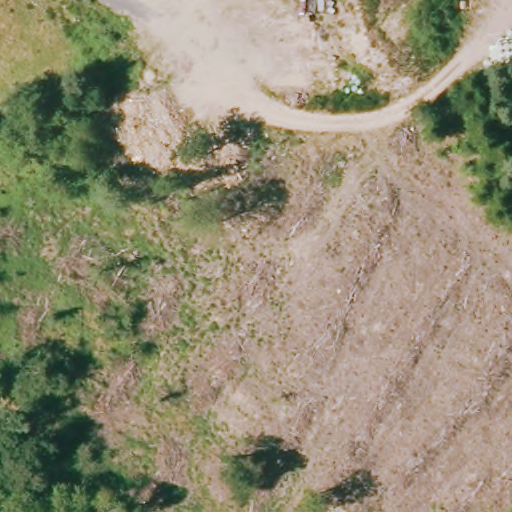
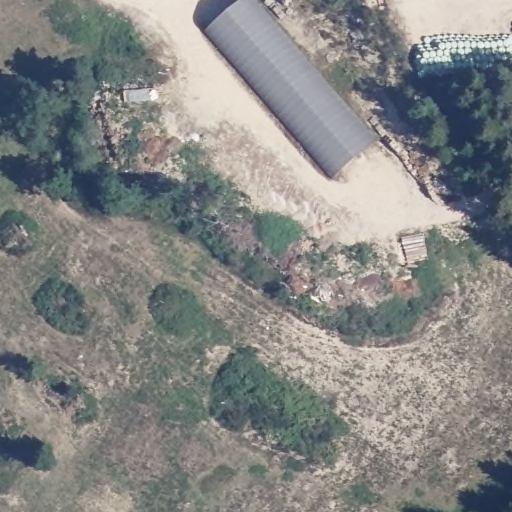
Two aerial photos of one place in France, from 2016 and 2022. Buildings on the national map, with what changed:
new [(209,29),(243,0),(252,0),(375,143),(336,176),(209,29)]

